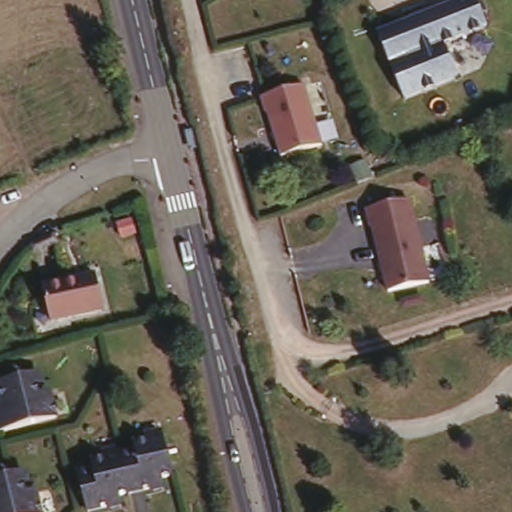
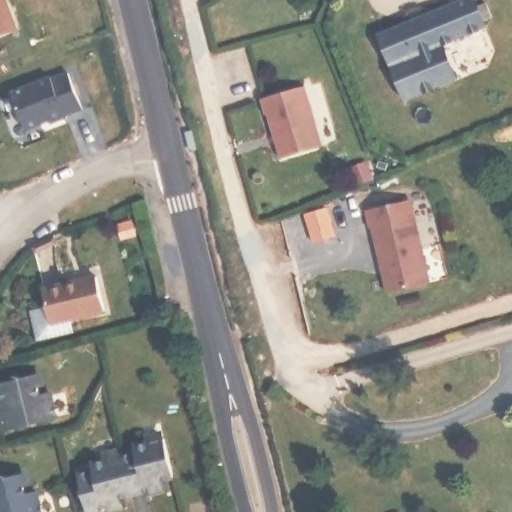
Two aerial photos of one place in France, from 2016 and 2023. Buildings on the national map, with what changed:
new [(0,36),(0,0),(7,0),(18,29),(0,36)]
unchanged [(457,0),(468,0),(479,27),(436,44),(452,80),(401,101),(374,36),(447,4),(457,0)]
new [(51,77),(52,79),(69,72),(83,107),(67,114),(67,116),(52,122),(51,120),(27,129),(12,92),(51,77)]
unchanged [(302,85),(321,145),(279,159),(261,98),(302,85)]
unchanged [(409,205),(426,286),(383,293),(363,215),(409,205)]
unchanged [(94,280),(101,315),(53,330),(46,298),(94,280)]
unchanged [(40,393),(46,390),(55,417),(0,435),(0,383),(35,371),(40,393)]
unchanged [(86,473),(128,461),(128,455),(159,445),(166,480),(143,487),(145,497),(103,507),(104,512),(79,512),(75,485),(87,482),(86,473)]
unchanged [(19,500),(28,497),(32,512),(0,512),(0,486),(13,481),(19,500)]

